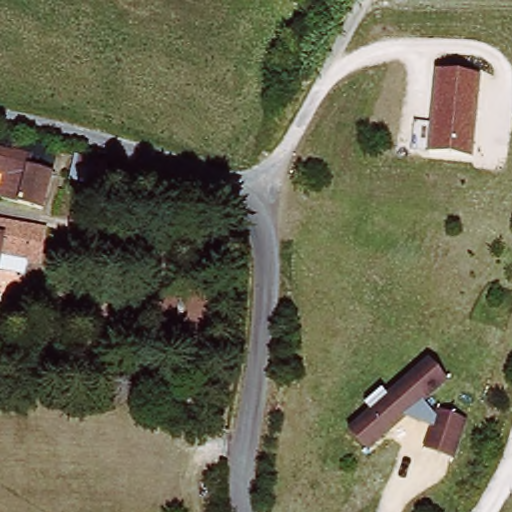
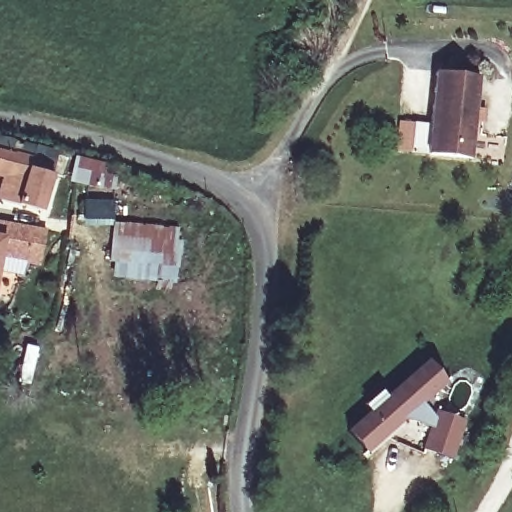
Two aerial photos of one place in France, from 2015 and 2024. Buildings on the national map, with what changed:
unchanged [(435,74),(482,78),(473,160),(427,155),(435,74)]
unchanged [(55,215),(13,209),(16,185),(0,182),(0,149),(63,158),(55,215)]
new [(75,155),(106,162),(105,167),(117,170),(114,189),(68,180),(75,155)]
new [(113,199),(112,220),(83,220),(83,197),(113,199)]
unchanged [(41,257),(8,252),(7,250),(2,290),(0,290),(0,217),(32,222),(46,225),(41,257)]
new [(177,225),(176,281),(111,276),(112,260),(109,260),(112,220),(177,225)]
unchanged [(410,418),(370,450),(352,428),(435,360),(453,382),(428,402),(440,415),(437,426),(410,418)]
unchanged [(440,415),(442,410),(470,420),(457,459),(429,449),(437,426),(440,415)]

